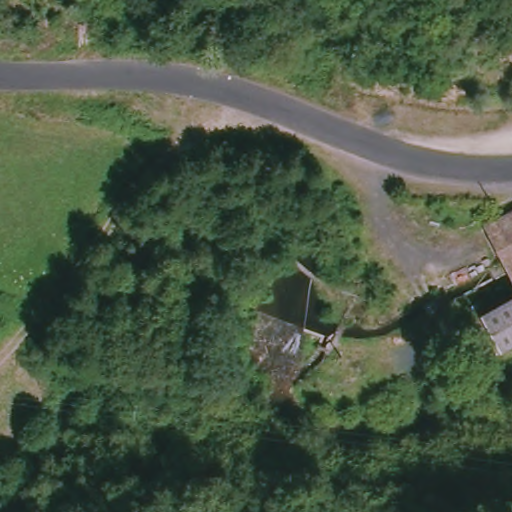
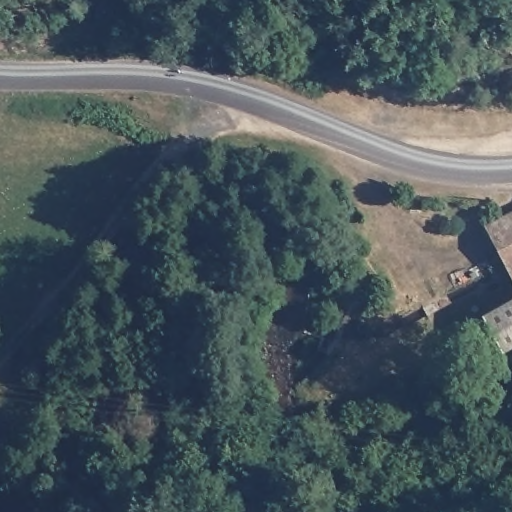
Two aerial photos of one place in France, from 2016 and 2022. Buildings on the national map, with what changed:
unchanged [(512,212),(512,288),(479,235),(512,212)]
unchanged [(479,324),(512,304),(512,352),(501,359),(479,324)]

